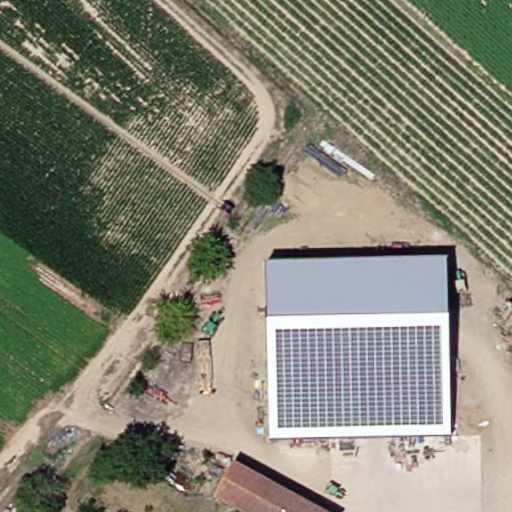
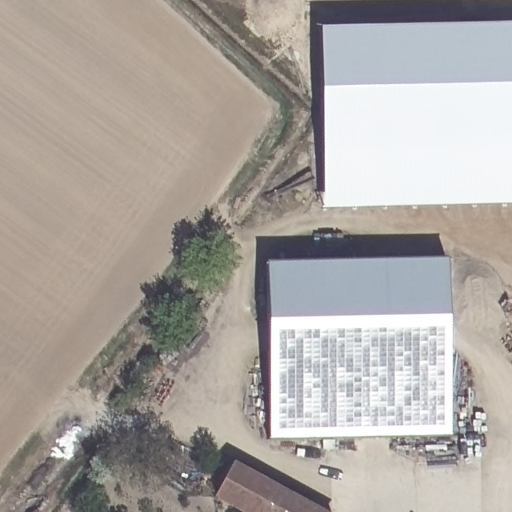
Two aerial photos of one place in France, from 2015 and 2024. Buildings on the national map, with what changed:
new [(319,28),(512,25),(512,205),(322,210),(319,28)]
unchanged [(266,263),(447,257),(451,436),(271,438),(266,263)]
unchanged [(206,502),(224,464),(323,512),(226,512),(206,502)]

